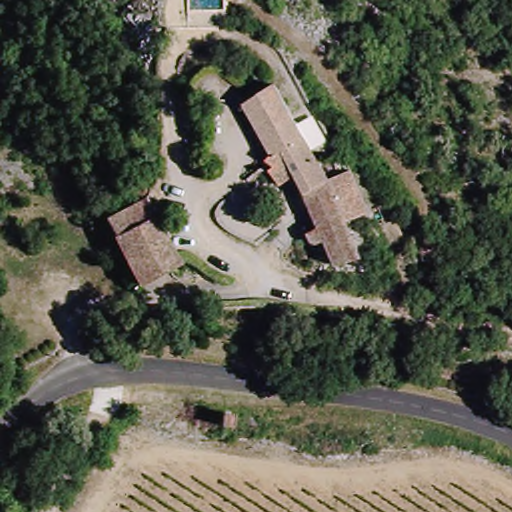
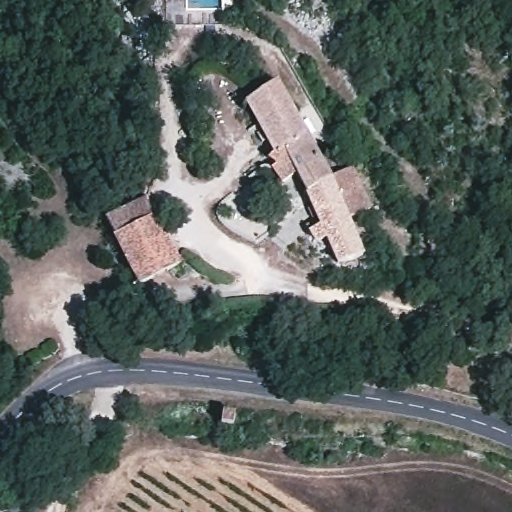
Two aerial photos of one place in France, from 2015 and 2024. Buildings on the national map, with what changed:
unchanged [(285,85),(361,228),(354,235),(368,278),(335,283),(317,257),(310,266),(300,248),(312,237),(296,215),(248,259),(212,218),(272,166),(245,110),(285,85)]
unchanged [(107,234),(155,202),(195,251),(145,284),(107,234)]

